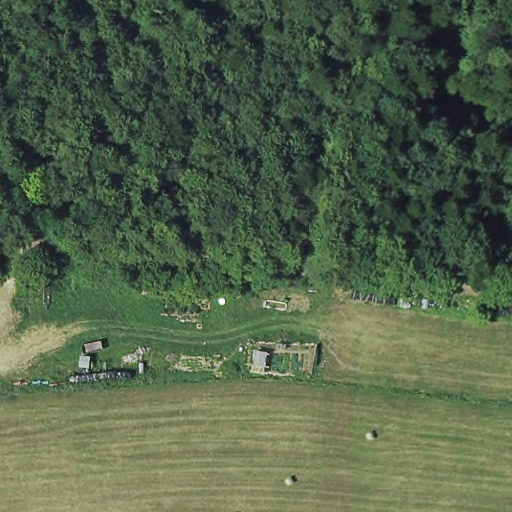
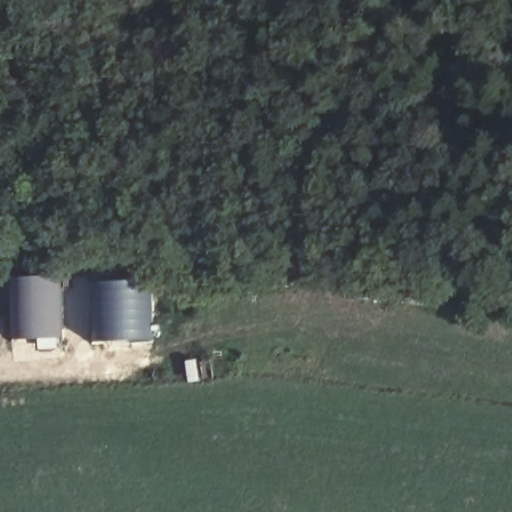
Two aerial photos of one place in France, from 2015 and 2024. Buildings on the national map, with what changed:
new [(13,340),(10,278),(61,276),(63,337),(13,340)]
new [(73,280),(151,279),(152,341),(89,342),(82,289),(73,289),(73,280)]

